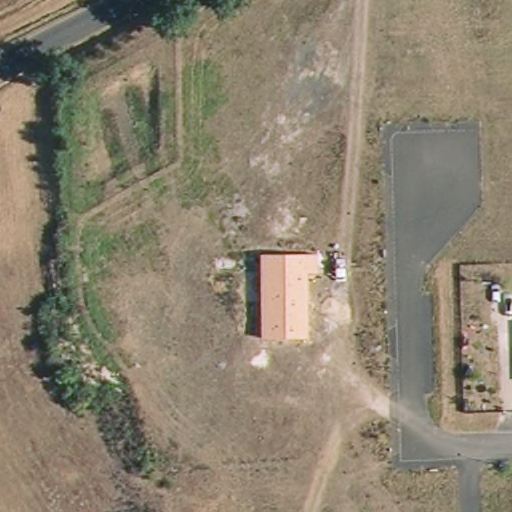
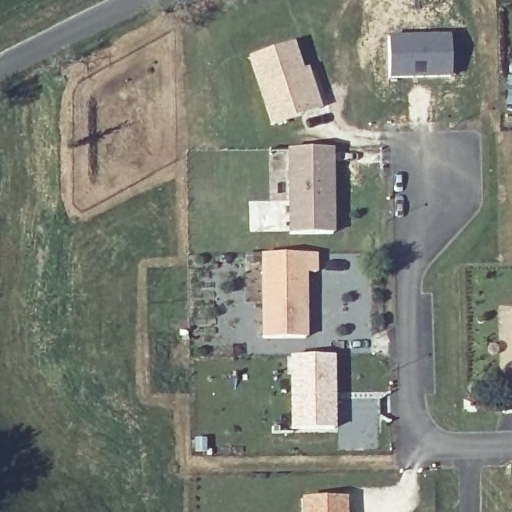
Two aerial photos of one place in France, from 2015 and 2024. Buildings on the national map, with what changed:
new [(451,33),(452,77),(390,78),(390,34),(451,33)]
new [(303,69),(308,66),(323,109),(271,127),(248,59),(294,41),(303,69)]
unchanged [(334,235),(286,236),(285,150),(333,150),(334,235)]
unchanged [(319,255),(319,273),(306,273),(307,337),(260,337),(260,255),(319,255)]
new [(335,356),(336,429),(294,429),(293,357),(335,356)]
new [(302,512),(301,498),(348,497),(348,512),(302,512)]

